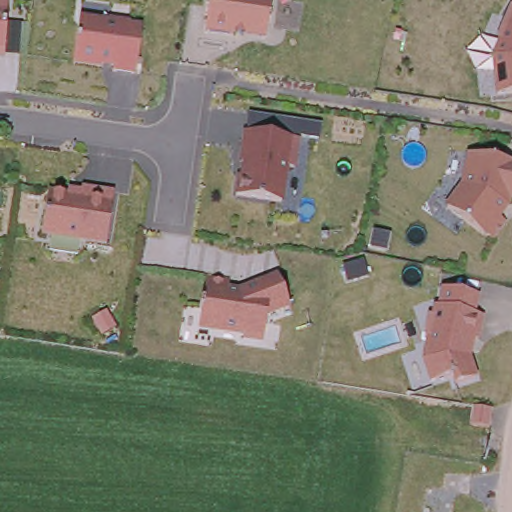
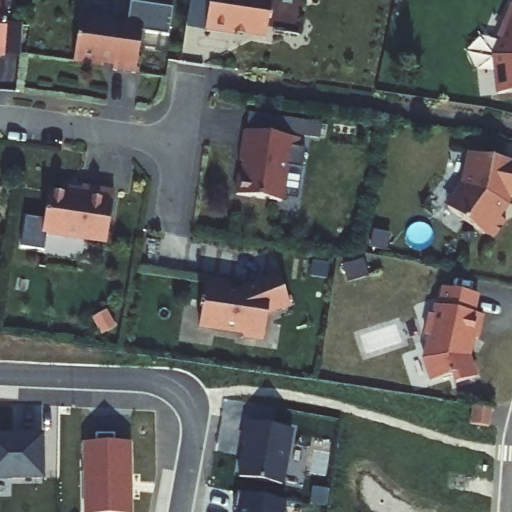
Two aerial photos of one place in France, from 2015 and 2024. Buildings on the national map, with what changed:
unchanged [(7,0),(5,21),(20,24),(18,56),(3,55),(2,60),(0,59),(0,0),(7,0)]
unchanged [(203,29),(207,0),(271,0),(263,38),(203,29)]
unchanged [(512,94),(495,98),(492,56),(497,42),(495,36),(510,5),(512,6),(512,94)]
unchanged [(142,25),(135,74),(72,65),(80,16),(142,25)]
unchanged [(250,112),(321,123),(318,140),(298,138),(247,131),(250,112)]
unchanged [(298,138),(295,168),(288,171),(283,204),(232,195),(235,177),(237,175),(240,164),(237,161),(242,130),(298,138)]
unchanged [(512,200),(510,200),(508,207),(487,238),(442,205),(460,184),(465,151),(512,161),(512,200)]
unchanged [(73,192),(79,186),(113,191),(105,247),(40,236),(48,189),(73,192)]
unchanged [(288,306),(270,314),(261,341),(197,330),(205,275),(228,277),(230,288),(238,289),(275,273),(288,306)]
unchanged [(477,297),(475,314),(481,314),(478,338),(473,338),(470,360),(475,377),(450,386),(450,378),(427,385),(422,359),(430,304),(436,306),(440,287),(477,297)]
unchanged [(470,425),(472,405),(491,408),(488,428),(470,425)]
new [(240,478),(246,447),(242,446),(247,423),(292,431),(282,486),(240,478)]
new [(0,480),(0,438),(25,438),(25,436),(43,435),(44,480),(0,480)]
new [(97,444),(97,435),(116,435),(116,443),(131,443),(132,484),(129,484),(129,492),(132,492),(132,512),(87,512),(87,444),(97,444)]
new [(290,503),(288,512),(238,512),(234,511),(237,493),(290,503)]

